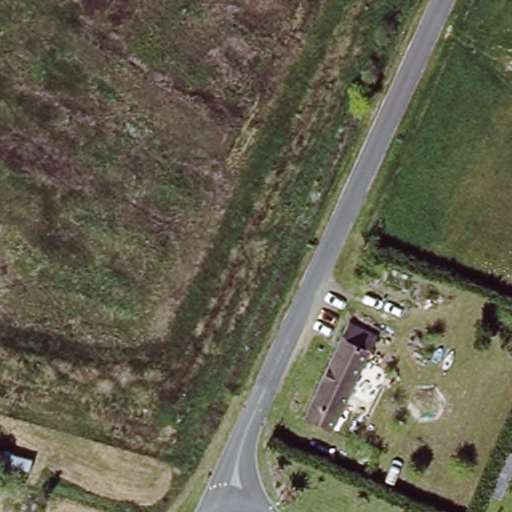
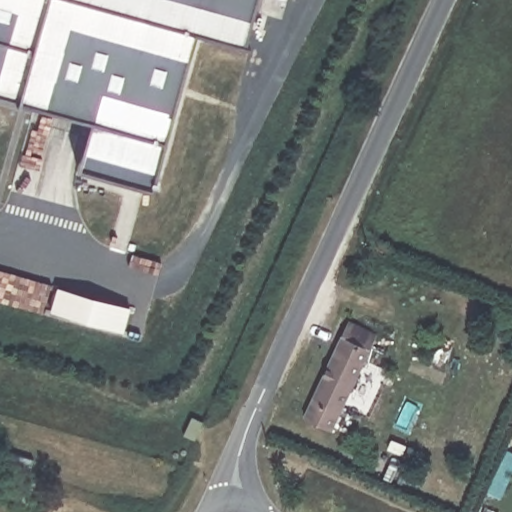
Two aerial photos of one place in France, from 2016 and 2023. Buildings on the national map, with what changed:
new [(194,30),(151,187),(77,164),(89,121),(19,100),(0,95),(0,0),(255,0),(243,42),(194,30)]
new [(48,313),(55,286),(132,305),(123,333),(48,313)]
unchanged [(335,413),(310,402),(356,303),(380,315),(335,413)]

